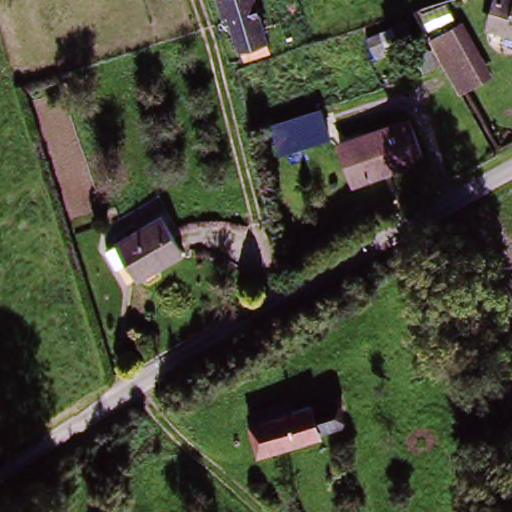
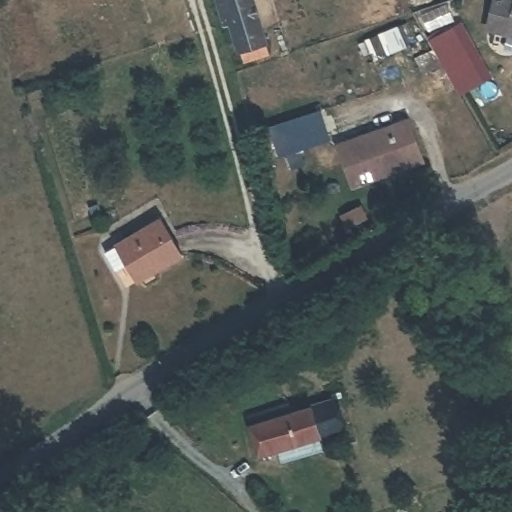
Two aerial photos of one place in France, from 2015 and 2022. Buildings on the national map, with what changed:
unchanged [(241,57),(238,47),(237,47),(228,16),(223,17),(218,0),(250,0),(264,51),(241,57)]
unchanged [(492,0),(512,0),(512,38),(485,31),(492,0)]
unchanged [(464,22),(495,76),(461,94),(431,40),(464,22)]
unchanged [(330,141),(278,156),(271,126),(321,110),(330,141)]
unchanged [(407,125),(418,157),(352,181),(340,149),(407,125)]
unchanged [(139,281),(130,265),(119,270),(109,252),(164,222),(185,257),(139,281)]
unchanged [(249,422),(287,411),(288,416),(329,405),(338,433),(260,456),(249,422)]

